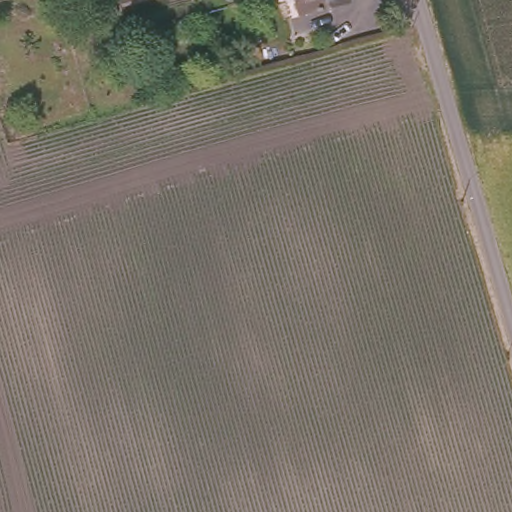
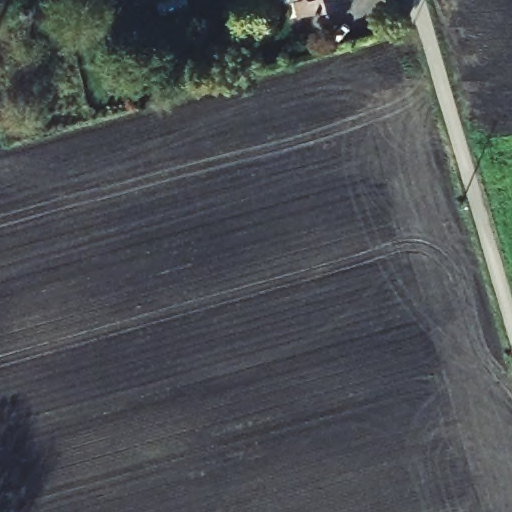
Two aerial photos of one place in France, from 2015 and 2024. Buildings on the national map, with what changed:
unchanged [(347,1),(299,14),(295,0),(346,0),(347,1)]

